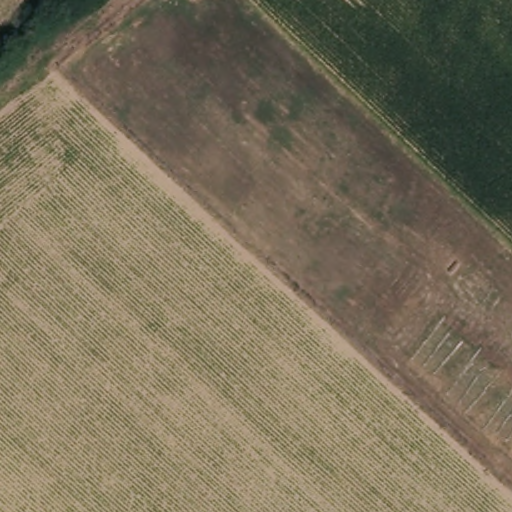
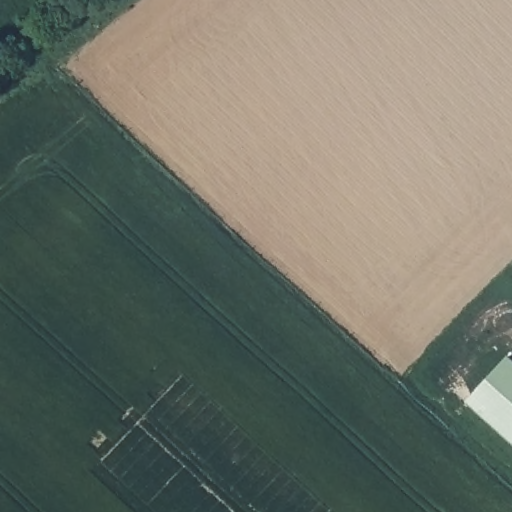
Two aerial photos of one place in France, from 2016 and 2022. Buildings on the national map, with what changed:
new [(510,353),(512,355),(512,440),(468,401),(510,353)]

